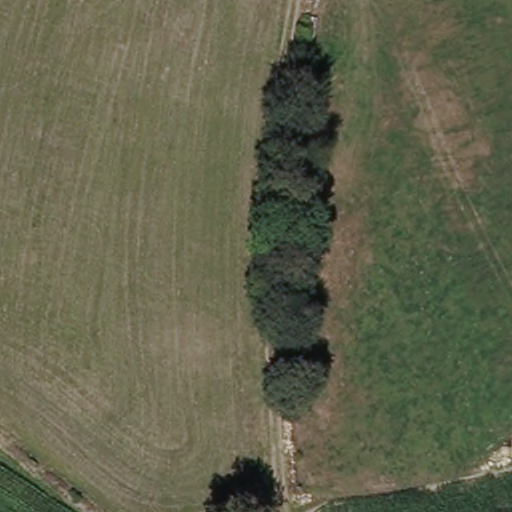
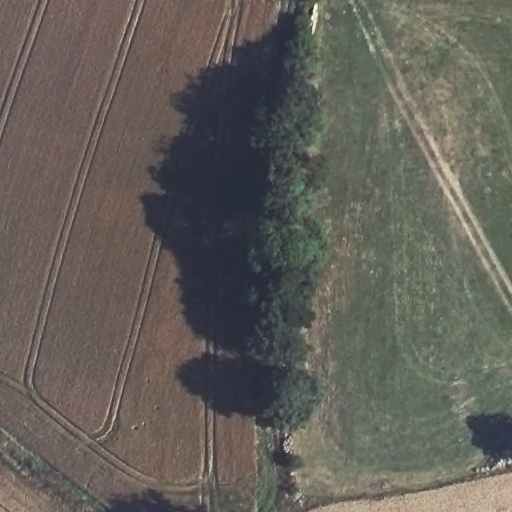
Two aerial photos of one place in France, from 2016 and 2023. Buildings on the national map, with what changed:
[]

